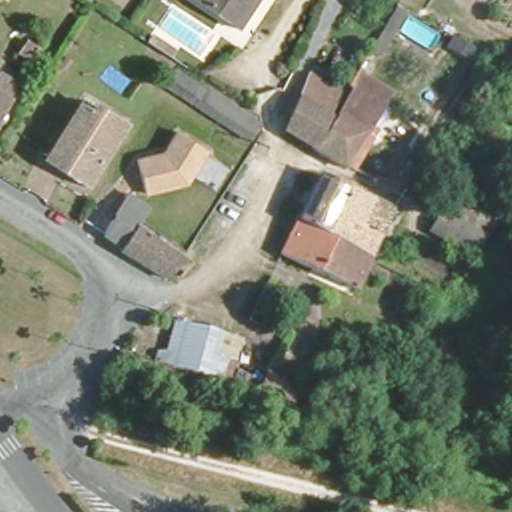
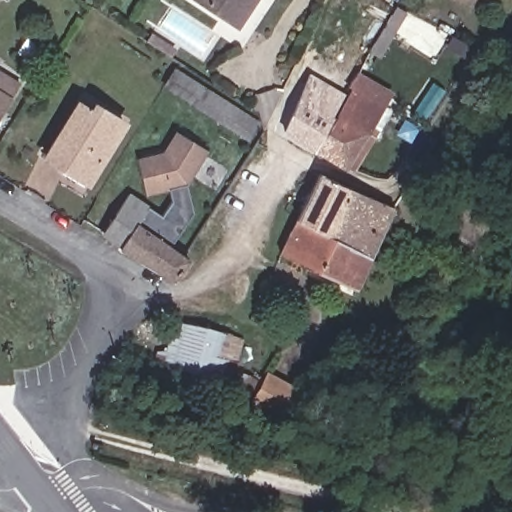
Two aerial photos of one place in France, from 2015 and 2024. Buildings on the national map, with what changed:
unchanged [(206,0),(256,0),(242,24),(206,0)]
unchanged [(349,164),(341,159),(339,161),(327,154),(309,143),(340,88),(354,65),(385,86),(365,119),(374,124),(349,164)]
unchanged [(249,141),(162,85),(174,66),(262,120),(249,141)]
unchanged [(0,115),(0,69),(20,82),(0,115)]
unchanged [(280,125),(313,71),(340,88),(309,143),(280,125)]
unchanged [(49,153),(81,101),(94,109),(98,101),(125,118),(88,179),(49,153)]
unchanged [(189,185),(145,196),(136,158),(163,151),(173,131),(208,150),(189,185)]
unchanged [(369,173),(381,154),(400,166),(393,179),(369,173)]
unchanged [(297,214),(298,211),(319,169),(349,183),(327,231),(297,214)]
unchanged [(327,231),(349,183),(389,203),(367,252),(327,231)]
unchanged [(116,243),(98,232),(126,189),(143,200),(132,219),(116,243)]
unchanged [(439,201),(488,228),(482,239),(476,248),(429,220),(432,215),(439,201)]
unchanged [(352,283),(280,248),(297,214),(327,231),(367,252),(352,283)]
unchanged [(183,253),(181,256),(168,274),(116,243),(132,219),(178,249),(183,253)]
unchanged [(162,362),(174,315),(202,322),(237,331),(224,382),(162,362)]
unchanged [(259,402),(274,378),(303,395),(290,421),(259,402)]

